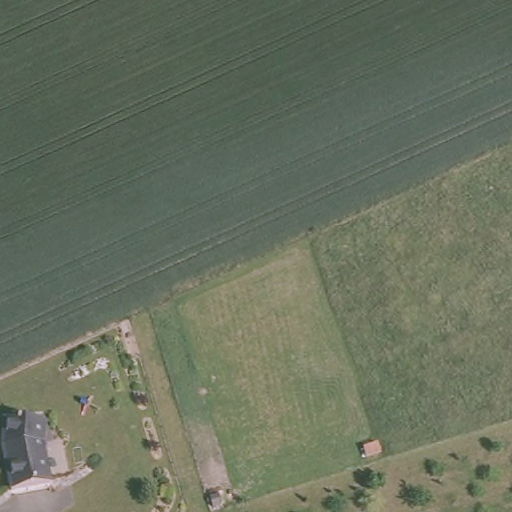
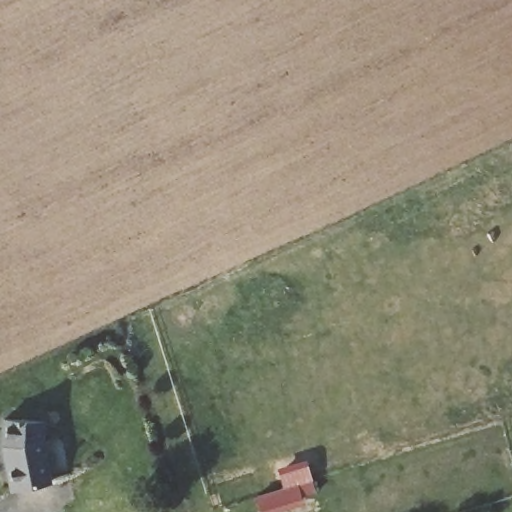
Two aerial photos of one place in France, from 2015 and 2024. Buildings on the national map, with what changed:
unchanged [(44,421),(40,439),(40,442),(51,481),(12,490),(2,458),(4,457),(4,456),(1,447),(0,447),(0,439),(4,418),(44,418),(44,421)]
new [(280,512),(260,512),(257,497),(284,489),(277,468),(306,460),(313,485),(301,489),(305,504),(280,512)]

